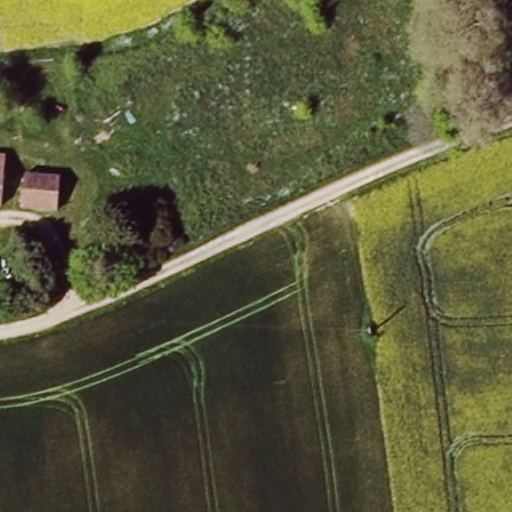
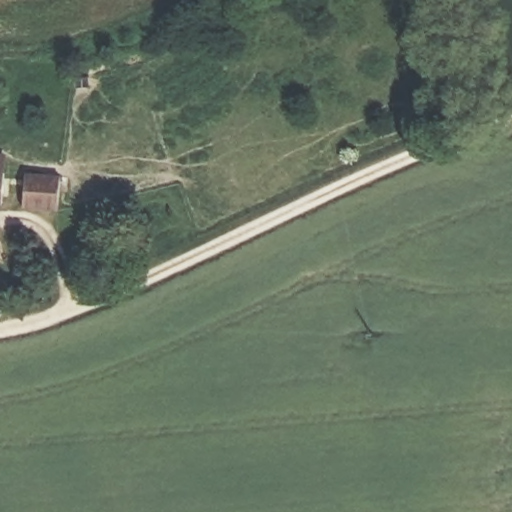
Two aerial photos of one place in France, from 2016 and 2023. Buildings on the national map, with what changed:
unchanged [(0,164),(0,148),(1,148),(0,164)]
unchanged [(59,173),(57,208),(22,206),(25,172),(59,173)]

